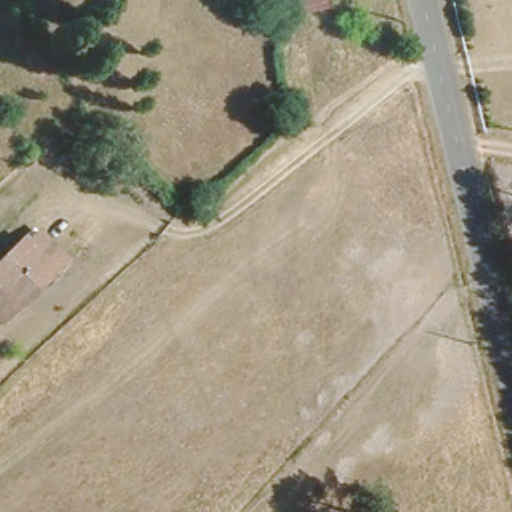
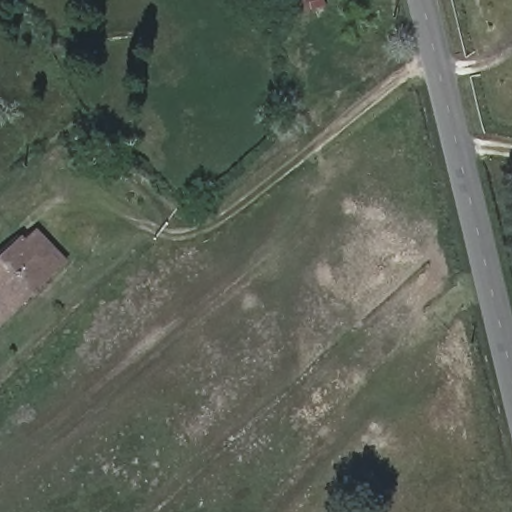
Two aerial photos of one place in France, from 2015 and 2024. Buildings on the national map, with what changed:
unchanged [(328,5),(287,12),(286,0),(328,0),(328,5)]
unchanged [(13,246),(21,254),(33,241),(59,267),(44,282),(40,277),(14,303),(17,307),(0,325),(0,259),(13,246)]

